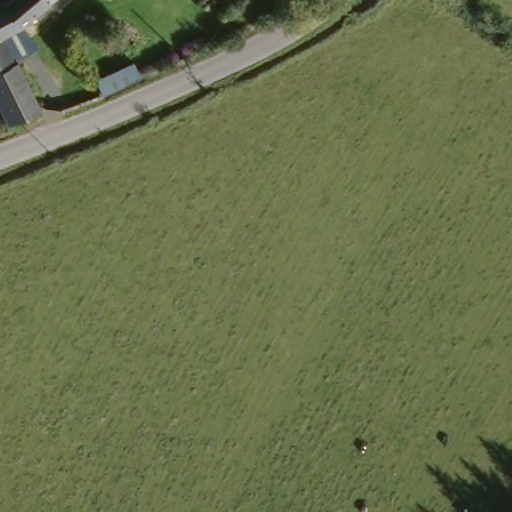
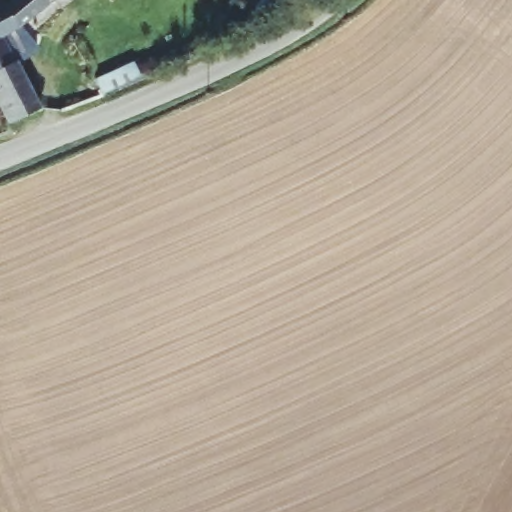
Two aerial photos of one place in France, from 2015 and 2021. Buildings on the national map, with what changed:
unchanged [(27,0),(62,0),(24,40),(13,15),(27,0)]
unchanged [(24,40),(11,50),(35,121),(2,136),(0,132),(0,21),(13,15),(24,40)]
unchanged [(93,84),(129,69),(137,83),(99,100),(93,84)]

